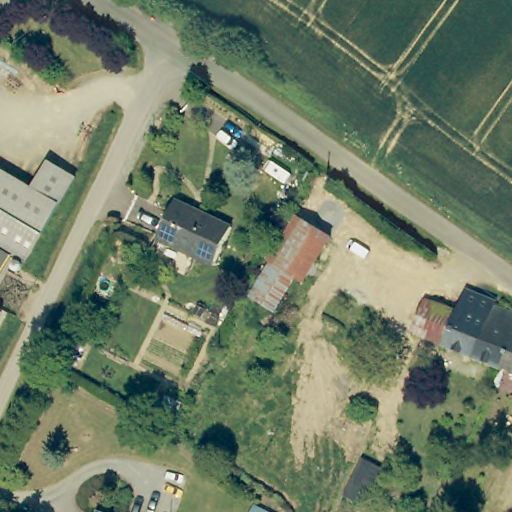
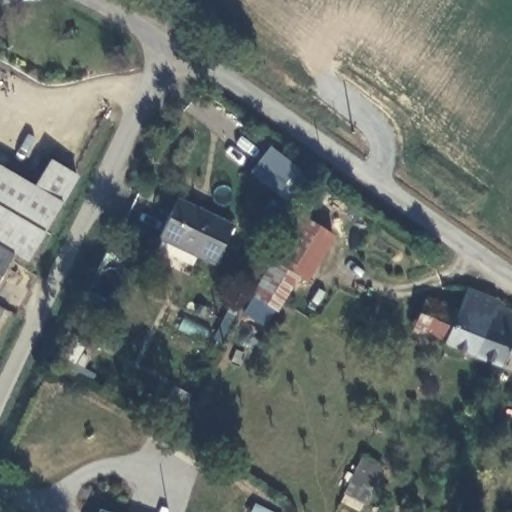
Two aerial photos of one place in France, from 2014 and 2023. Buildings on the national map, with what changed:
new [(269,146),(299,169),(310,179),(289,205),(277,195),(249,173),(269,146)]
unchanged [(49,161),(74,177),(42,233),(25,261),(14,254),(0,246),(0,167),(33,187),(49,161)]
unchanged [(236,227),(217,265),(161,238),(180,200),(236,227)]
unchanged [(273,267),(270,266),(298,221),(330,241),(303,286),(297,282),(273,267)]
unchanged [(0,277),(0,246),(14,254),(0,277)]
unchanged [(297,282),(277,313),(253,300),(273,267),(297,282)]
unchanged [(494,363),(446,344),(458,313),(469,288),(497,300),(495,305),(512,313),(512,339),(501,366),(494,363)]
unchanged [(416,332),(429,301),(458,313),(446,344),(416,332)]
unchanged [(0,314),(0,308),(3,310),(0,314)]
unchanged [(501,366),(512,339),(512,371),(501,366)]

